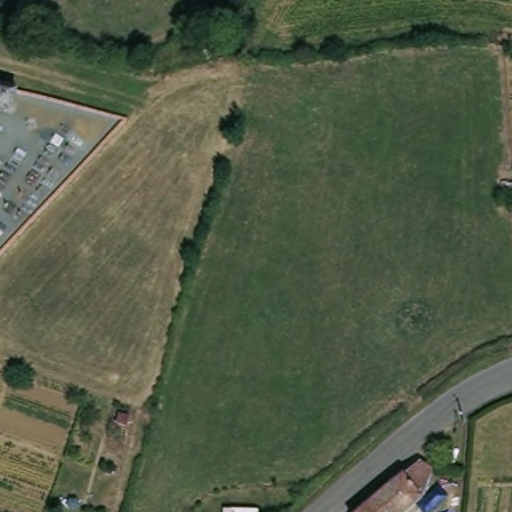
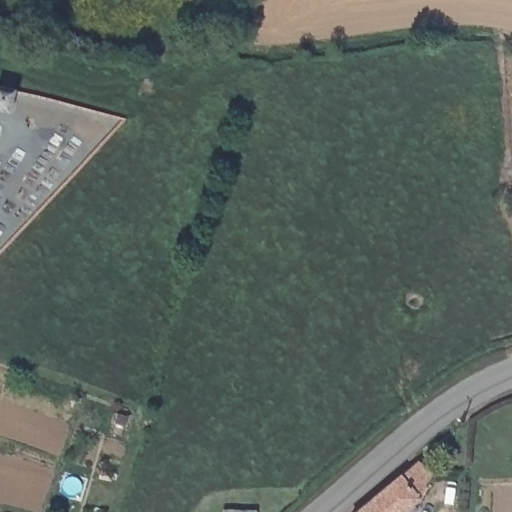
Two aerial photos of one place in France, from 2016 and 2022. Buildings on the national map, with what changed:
unchanged [(135,413),(140,398),(149,402),(145,416),(135,413)]
unchanged [(440,468),(430,499),(416,512),(365,512),(426,460),(440,468)]

